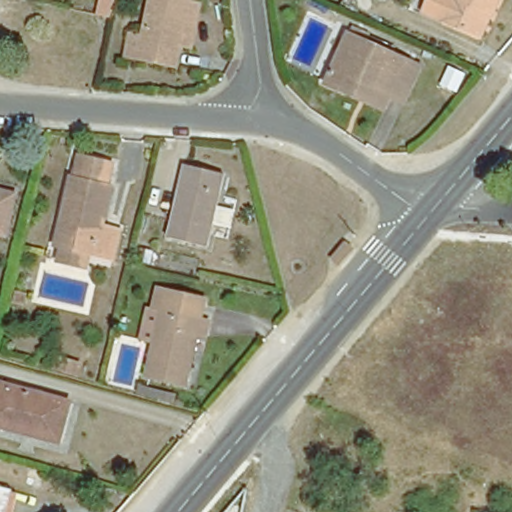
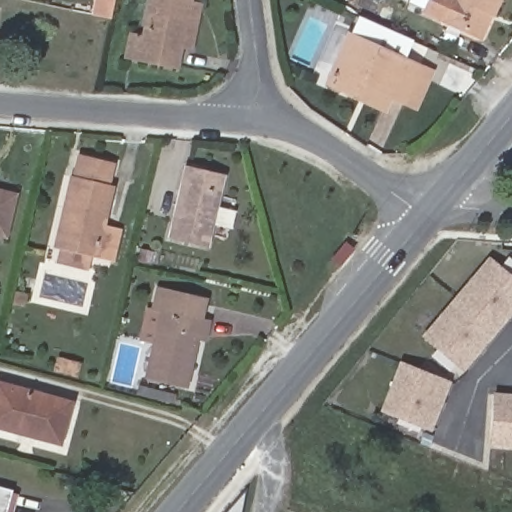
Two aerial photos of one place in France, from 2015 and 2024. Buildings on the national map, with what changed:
new [(115,0),(111,18),(97,14),(100,0),(115,0)]
unchanged [(138,33),(145,0),(196,0),(186,43),(175,40),(170,61),(134,54),(120,50),(124,30),(138,33)]
unchanged [(425,18),(434,0),(448,0),(454,3),(455,0),(499,0),(491,19),(480,43),(475,40),(425,18)]
unchanged [(338,88),(322,80),(346,25),(361,31),(358,38),(415,63),(400,98),(386,91),(379,105),(338,88)]
unchanged [(108,179),(112,179),(104,220),(120,224),(112,254),(90,249),(86,264),(59,258),(72,198),(66,197),(72,169),(76,170),(79,149),(113,157),(108,179)]
unchanged [(205,241),(169,233),(186,159),(222,168),(205,241)]
unchanged [(0,190),(16,194),(6,235),(0,233),(0,190)]
unchanged [(343,261),(337,256),(352,239),(358,244),(343,261)]
unchanged [(150,262),(139,259),(141,249),(152,252),(150,262)]
new [(490,256),(512,275),(512,314),(464,371),(421,334),(490,256)]
unchanged [(200,310),(209,312),(205,329),(196,327),(185,376),(146,367),(162,300),(153,298),(157,279),(204,289),(200,310)]
unchanged [(57,356),(81,363),(78,377),(53,371),(57,356)]
new [(402,361),(449,381),(431,429),(381,409),(402,361)]
unchanged [(173,392),(137,382),(138,374),(175,384),(173,392)]
unchanged [(0,422),(0,379),(69,397),(59,437),(0,422)]
new [(512,393),(512,449),(489,448),(493,392),(512,393)]
unchanged [(0,487),(12,491),(6,512),(0,512),(0,487)]

